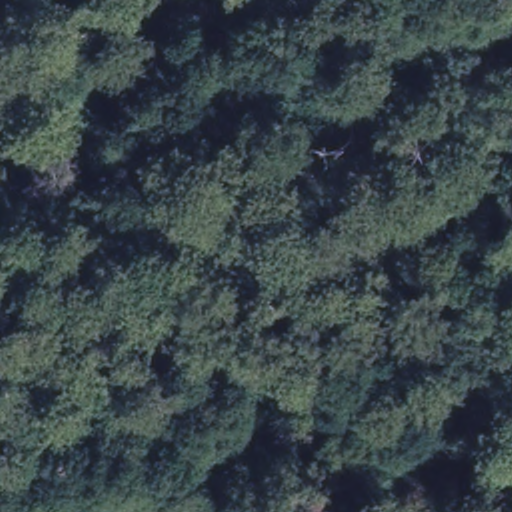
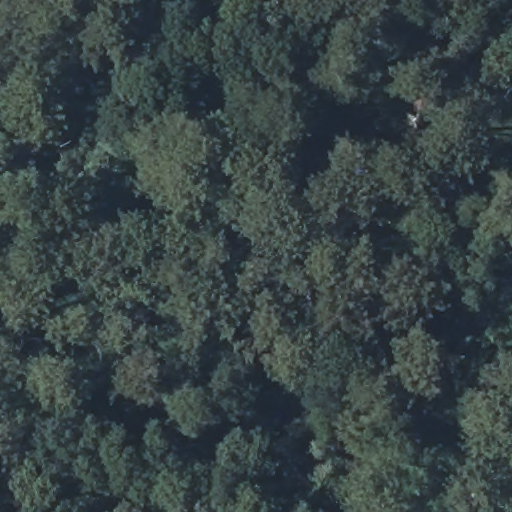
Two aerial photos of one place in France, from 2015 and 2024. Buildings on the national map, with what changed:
[]

